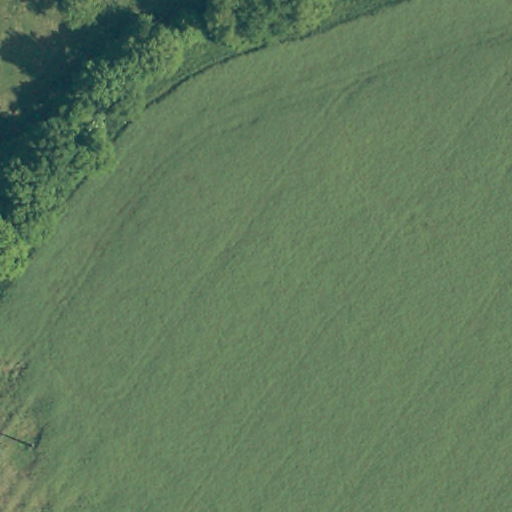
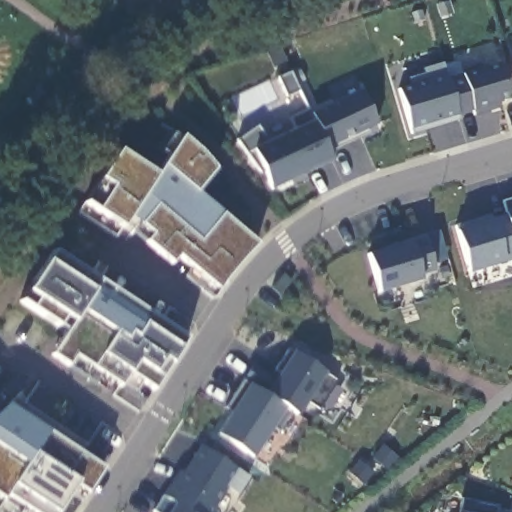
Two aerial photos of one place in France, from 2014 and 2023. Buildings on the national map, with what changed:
new [(447,74),(449,78),(463,74),(470,72),(502,62),(512,99),(474,110),(457,116),(410,128),(399,89),(447,74)]
new [(258,127),(268,141),(297,127),(292,117),(310,111),(362,89),(379,125),(327,148),(332,161),(270,187),(264,174),(261,175),(239,141),(258,127)]
new [(120,150),(157,175),(170,156),(159,149),(173,131),(184,137),(215,169),(196,193),(257,245),(210,298),(119,227),(86,203),(120,150)]
new [(503,201),(512,197),(512,231),(507,213),(503,201)]
new [(512,231),(512,258),(506,262),(468,272),(455,230),(491,219),(507,213),(512,231)]
new [(412,240),(441,232),(449,260),(434,266),(436,271),(423,275),(424,281),(380,293),(369,254),(412,240)]
new [(99,281),(185,338),(153,389),(140,382),(131,397),(116,387),(110,397),(49,359),(76,317),(67,311),(59,326),(20,302),(54,251),(99,281)]
new [(255,366),(277,379),(294,352),(325,372),(338,381),(319,410),(308,402),(299,417),(293,412),(280,432),(274,427),(254,459),(217,435),(232,412),(225,410),(255,366)]
new [(104,467),(81,504),(68,496),(56,512),(20,512),(5,502),(0,511),(0,411),(9,406),(104,467)]
new [(227,488),(212,512),(190,512),(176,503),(163,496),(178,470),(184,475),(200,448),(250,478),(239,497),(227,488)]
new [(176,503),(190,512),(154,512),(163,496),(176,503)]
new [(497,511),(501,512),(460,512),(462,500),(498,507),(497,511)]

